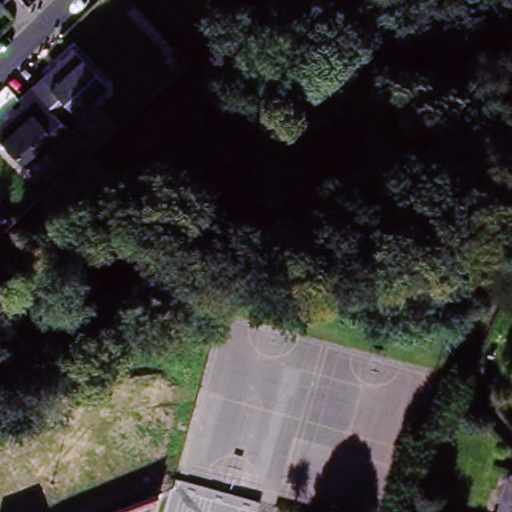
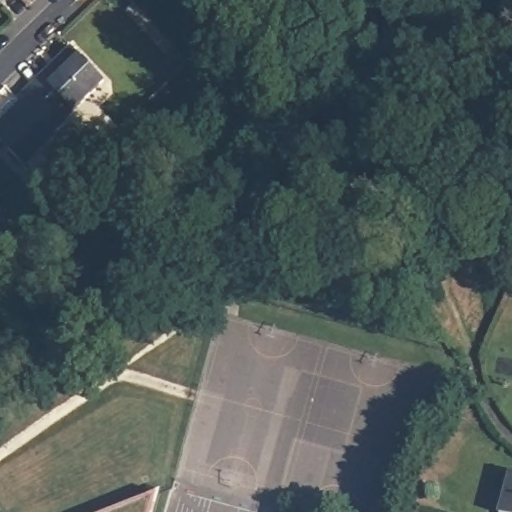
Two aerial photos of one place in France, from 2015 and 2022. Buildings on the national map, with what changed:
unchanged [(0,5),(0,0),(11,0),(2,8),(0,5)]
unchanged [(72,51),(106,85),(64,125),(31,90),(43,79),(47,82),(59,70),(56,67),(72,51)]
unchanged [(67,127),(56,137),(57,140),(26,169),(0,141),(0,119),(6,114),(10,118),(24,104),(20,100),(31,90),(64,125),(67,127)]
unchanged [(500,511),(497,511),(508,470),(512,471),(512,512),(500,512),(500,511)]
unchanged [(158,493),(153,512),(111,512),(158,493)]

